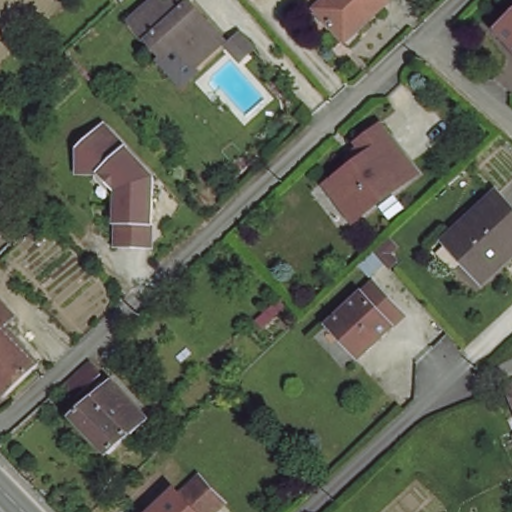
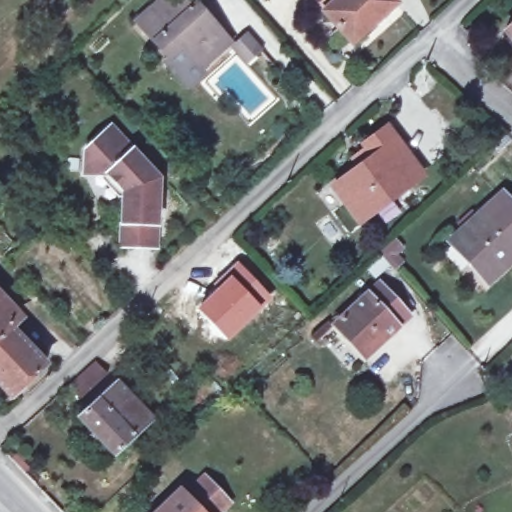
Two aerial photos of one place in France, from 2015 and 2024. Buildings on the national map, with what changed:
unchanged [(170,61),(156,74),(125,38),(167,0),(169,0),(218,57),(190,83),(170,61)]
unchanged [(350,40),(320,8),(329,0),(393,0),(350,40)]
unchanged [(512,16),(512,44),(498,29),(512,16)]
unchanged [(250,64),(239,74),(226,60),(238,50),(250,64)]
unchanged [(121,237),(123,216),(125,184),(109,167),(86,166),(87,143),(101,130),(113,119),(124,131),(160,171),(158,218),(157,239),(121,237)]
unchanged [(407,194),(362,229),(336,194),(375,165),(365,154),(390,135),(414,168),(397,181),(407,194)]
unchanged [(491,280),(454,240),(506,193),(512,199),(512,250),(506,255),(512,261),(491,280)]
new [(237,261),(270,294),(226,340),(195,309),(237,261)]
unchanged [(402,317),(358,358),(330,329),(375,288),(402,317)]
unchanged [(15,343),(46,376),(16,406),(0,389),(0,315),(21,337),(15,343)]
unchanged [(104,374),(76,399),(65,388),(93,362),(104,374)]
unchanged [(110,455),(76,420),(114,384),(147,420),(110,455)]
unchanged [(182,497),(201,478),(226,503),(217,512),(153,512),(175,490),(182,497)]

